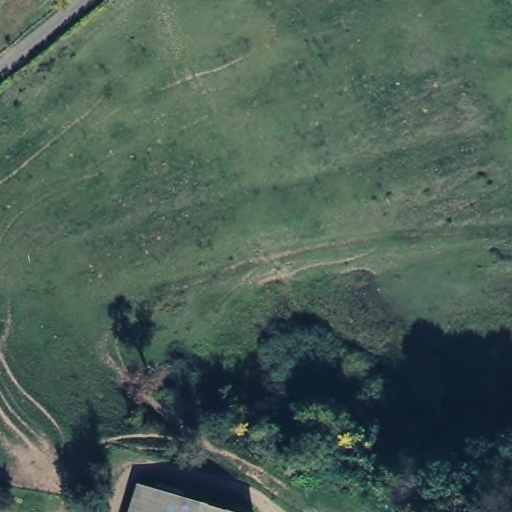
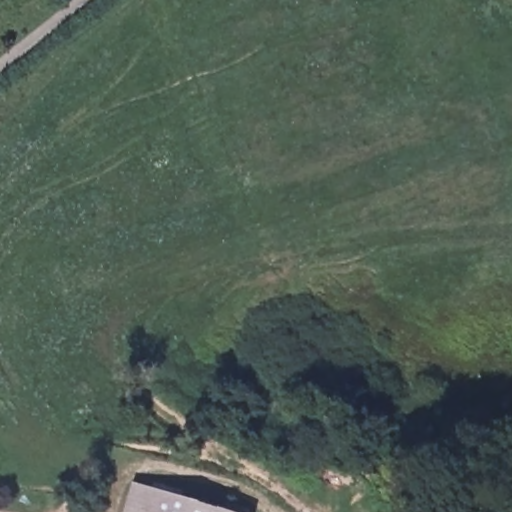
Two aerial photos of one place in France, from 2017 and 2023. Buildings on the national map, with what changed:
unchanged [(129,512),(137,484),(229,512),(129,512)]

